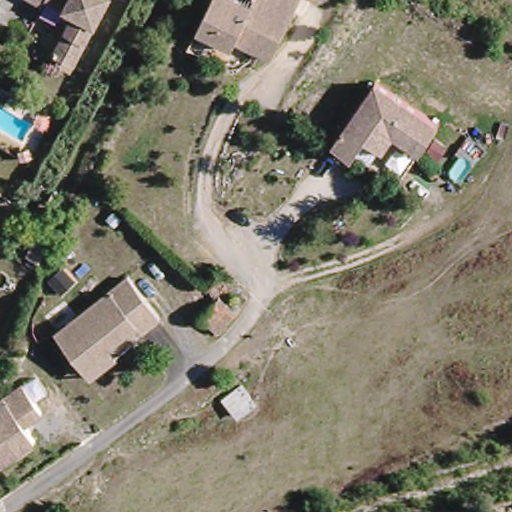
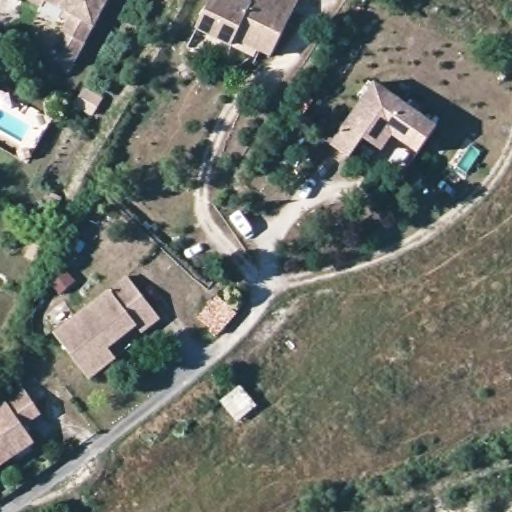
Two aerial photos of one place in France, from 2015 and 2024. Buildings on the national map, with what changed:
unchanged [(49,1),(43,10),(29,0),(108,0),(114,4),(75,68),(54,56),(74,30),(63,22),(69,14),(49,1)]
unchanged [(241,28),(232,39),(198,15),(208,0),(302,0),(271,50),(241,28)]
unchanged [(367,165),(352,155),(332,142),(374,77),(417,107),(435,120),(418,145),(392,183),(367,165)]
unchanged [(30,272),(18,267),(25,252),(37,258),(30,272)]
unchanged [(98,375),(88,366),(58,336),(121,269),(160,308),(145,324),(137,317),(113,341),(122,351),(98,375)]
unchanged [(234,317),(218,335),(213,331),(198,320),(212,302),(215,299),(234,317)]
unchanged [(32,445),(0,466),(0,398),(32,445)]

